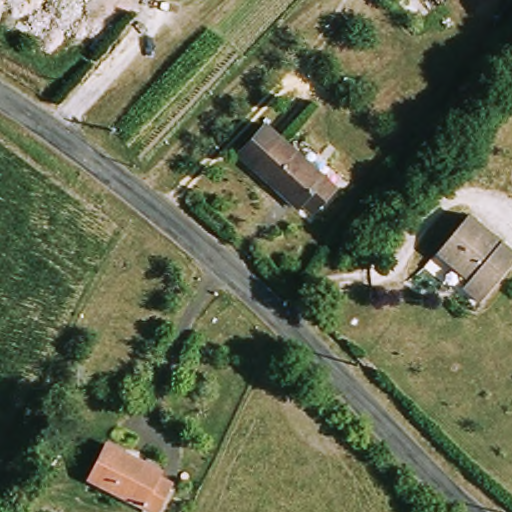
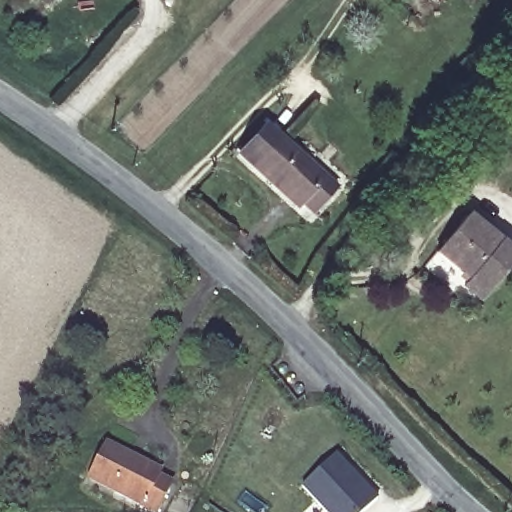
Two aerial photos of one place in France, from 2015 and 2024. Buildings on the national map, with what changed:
unchanged [(434,0),(442,0),(438,4),(434,0)]
unchanged [(275,200),(235,160),(265,129),(330,191),(306,217),(281,193),(275,200)]
unchanged [(441,247),(474,212),(512,247),(512,267),(482,299),(466,284),(472,277),(441,247)]
unchanged [(160,512),(135,512),(84,481),(95,465),(105,448),(139,469),(175,491),(160,512)]
new [(377,500),(365,512),(327,512),(302,487),(336,455),(377,500)]

